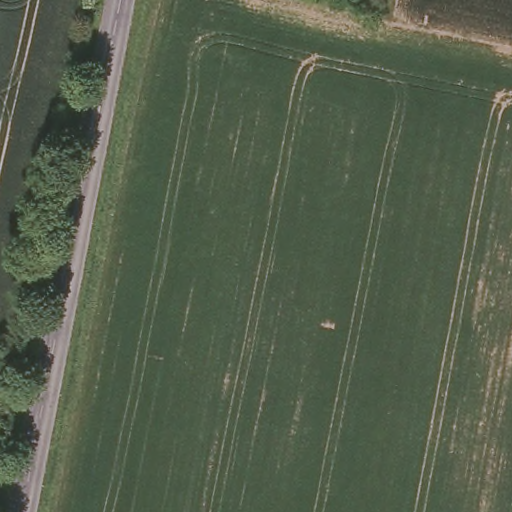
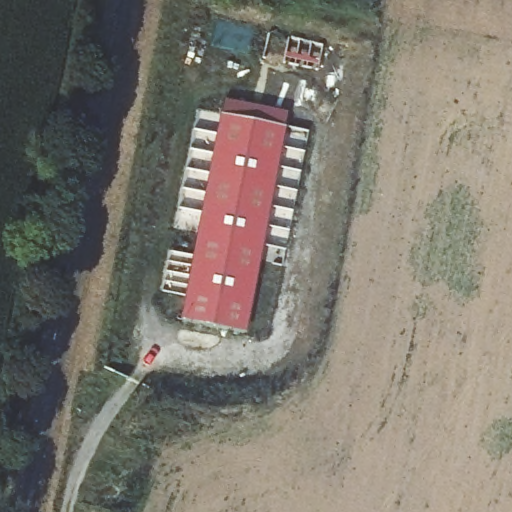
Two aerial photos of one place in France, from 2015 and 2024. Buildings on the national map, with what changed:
new [(223,98),(293,112),(250,334),(180,320),(223,98)]

